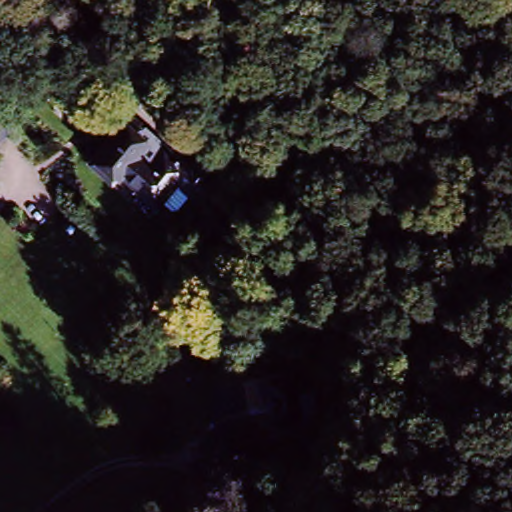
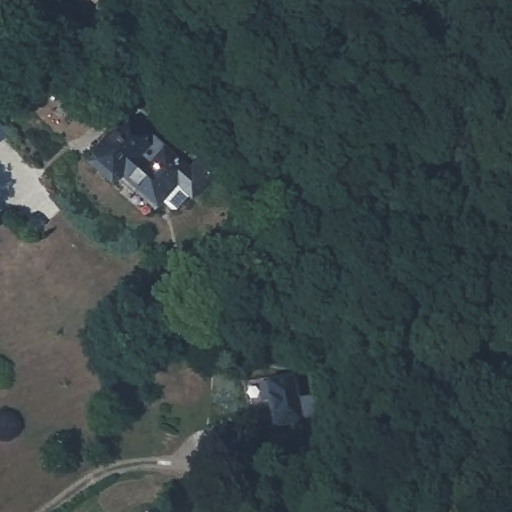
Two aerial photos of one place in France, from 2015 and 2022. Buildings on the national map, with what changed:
unchanged [(113,188),(108,194),(75,161),(116,120),(152,148),(158,139),(205,184),(183,204),(170,195),(148,216),(113,188)]
unchanged [(294,373),(306,424),(267,435),(251,384),(294,373)]

